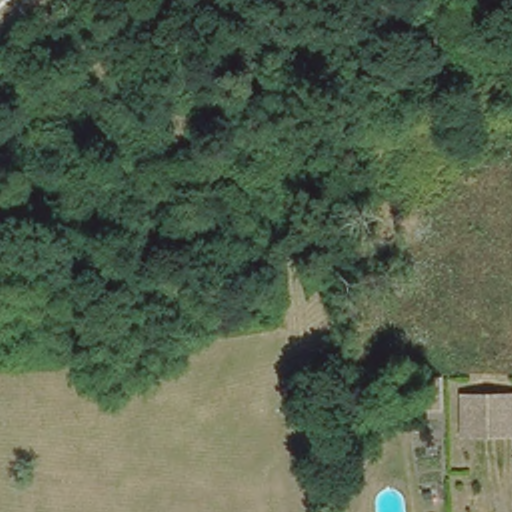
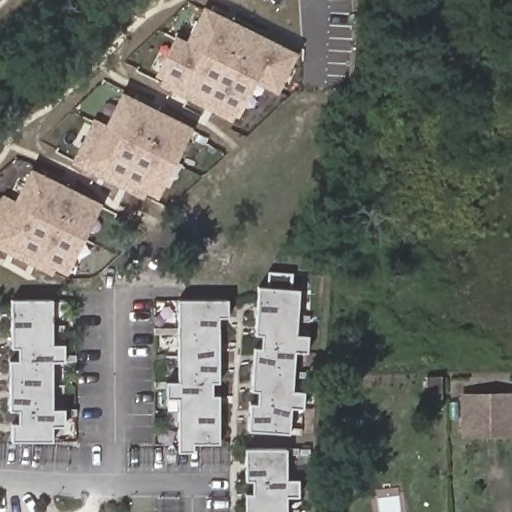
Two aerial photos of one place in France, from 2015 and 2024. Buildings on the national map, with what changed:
new [(181,31),(192,36),(210,2),(305,49),(284,92),(262,83),(244,121),(161,78),(181,31)]
unchanged [(437,60),(407,56),(410,29),(440,31),(437,60)]
new [(97,116),(110,122),(126,90),(197,126),(163,197),(152,193),(148,198),(74,161),(97,116)]
new [(5,195),(17,200),(35,167),(107,203),(72,274),(60,268),(57,276),(0,247),(0,204),(5,195)]
new [(269,286),(268,271),(292,273),(291,288),(300,289),(297,334),(309,334),(307,352),(296,352),(295,383),(307,384),(306,401),(294,400),(291,432),(250,430),(252,403),(258,403),(259,391),(254,391),(256,347),(263,347),(263,333),(257,333),(260,286),(269,286)]
new [(229,299),(229,315),(220,315),(220,381),(212,381),(213,394),(220,394),(220,442),(195,442),(195,450),(179,450),(180,397),(169,397),(169,380),(180,380),(178,298),(229,299)]
new [(54,299),(54,343),(66,343),(66,360),(54,360),(54,408),(66,408),(66,425),(54,425),(54,440),(12,440),(12,422),(19,422),(19,409),(11,409),(11,359),(19,359),(19,346),(12,346),(12,299),(54,299)]
unchanged [(512,435),(462,435),(462,397),(512,397),(512,435)]
new [(287,448),(287,478),(299,478),(299,496),(288,496),(288,512),(247,512),(247,492),(255,492),(255,480),(247,480),(247,447),(287,448)]

